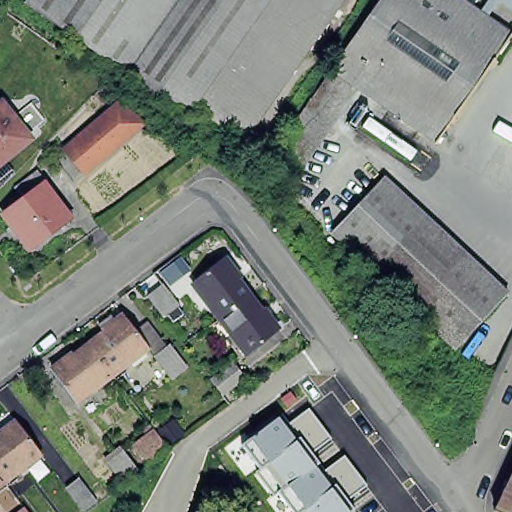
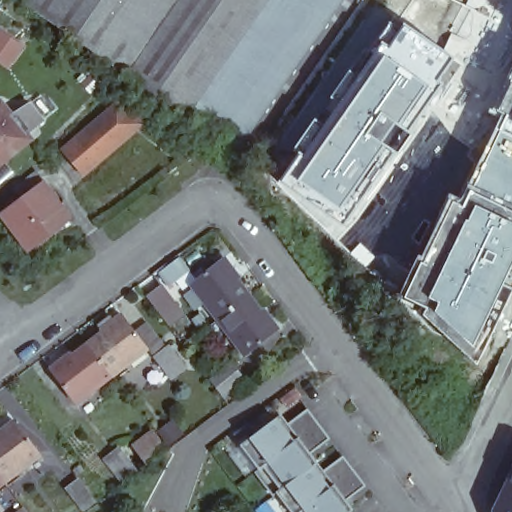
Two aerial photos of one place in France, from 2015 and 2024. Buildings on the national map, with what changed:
unchanged [(188,115),(24,2),(26,0),(268,0),(194,106),(188,115)]
unchanged [(194,106),(268,0),(342,0),(243,141),(194,106)]
demolished [(290,191),(266,163),(382,0),(466,0),(512,30),(512,32),(436,145),(362,92),(290,191)]
demolished [(512,0),(512,10),(498,0),(512,0)]
new [(299,152),(293,148),(317,117),(323,122),(332,104),(328,101),(352,67),(355,69),(380,40),(377,38),(395,15),(457,58),(449,72),(451,74),(449,77),(451,78),(364,211),(337,242),(277,184),(299,152)]
new [(497,111),(512,73),(512,209),(466,187),(502,114),(497,111)]
unchanged [(85,172),(65,149),(111,110),(117,104),(142,124),(136,129),(85,172)]
unchanged [(1,109),(29,144),(0,167),(0,109),(1,109)]
unchanged [(74,224),(69,227),(34,254),(8,219),(28,204),(19,192),(39,177),(48,189),(62,207),(74,224)]
new [(459,201),(466,187),(512,209),(512,292),(508,291),(506,294),(504,293),(474,352),(467,347),(464,349),(420,315),(424,310),(400,298),(450,196),(459,201)]
demolished [(424,221),(465,260),(414,315),(373,277),(424,221)]
unchanged [(196,283),(229,257),(244,278),(243,279),(254,295),(266,311),(268,310),(283,330),(251,356),(236,336),(226,343),(213,327),(224,320),(196,283)]
unchanged [(19,277),(16,278),(14,276),(16,274),(19,277)]
unchanged [(162,285),(178,306),(162,317),(147,297),(162,285)]
unchanged [(148,348),(111,375),(88,343),(103,332),(102,331),(98,325),(108,317),(112,323),(123,315),(148,348)]
unchanged [(76,402),(51,369),(71,354),(72,356),(88,343),(111,375),(76,402)]
unchanged [(186,367),(171,378),(155,357),(169,346),(186,367)]
unchanged [(211,381),(232,364),(242,377),(221,394),(211,381)]
unchanged [(286,427),(308,409),(331,439),(312,453),(320,463),(316,467),(321,475),(345,456),(367,486),(347,500),(354,509),(350,512),(292,512),(278,492),(274,495),(256,471),(259,468),(242,445),(251,437),(278,417),(286,427)]
unchanged [(0,476),(0,432),(15,421),(40,454),(4,482),(0,476)]
unchanged [(167,448),(146,463),(134,447),(154,432),(167,448)]
unchanged [(135,472),(123,482),(106,461),(118,451),(135,472)]
unchanged [(493,512),(512,473),(512,512),(493,512)]
unchanged [(0,484),(0,476),(4,482),(0,484)]
unchanged [(66,489),(79,480),(96,502),(83,511),(66,489)]

